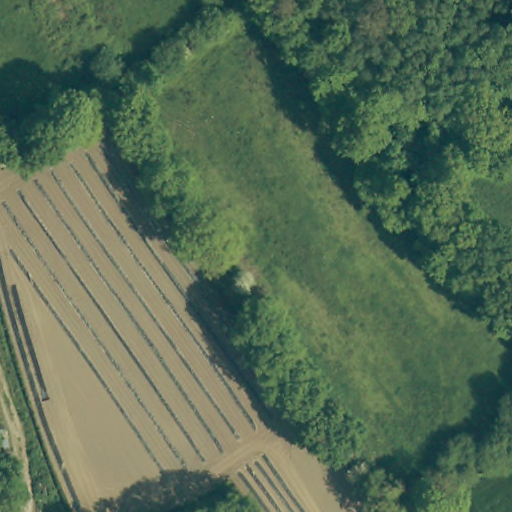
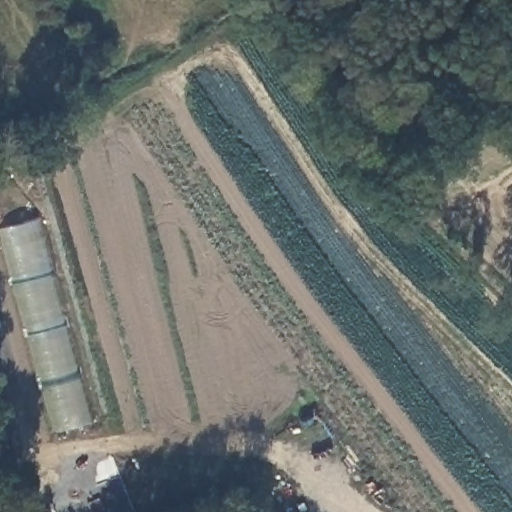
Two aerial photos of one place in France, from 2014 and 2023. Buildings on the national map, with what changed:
new [(40,219),(94,422),(59,431),(3,229),(40,219)]

